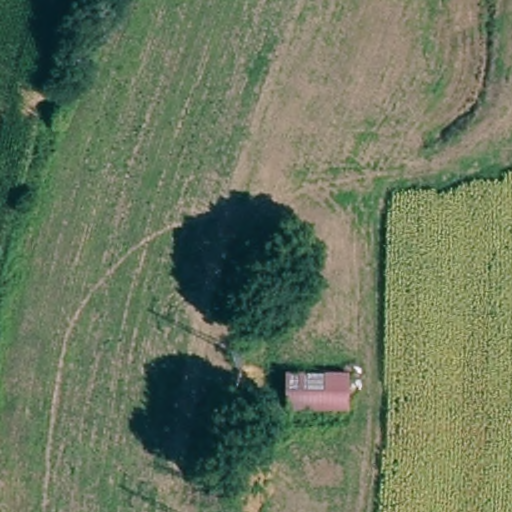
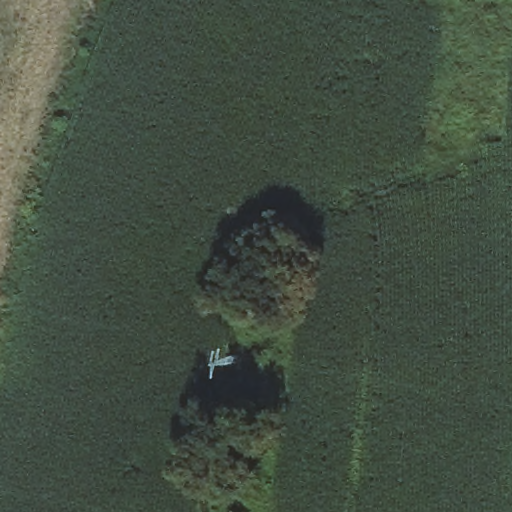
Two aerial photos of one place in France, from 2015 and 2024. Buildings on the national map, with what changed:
demolished [(352,416),(287,414),(287,375),(351,375),(352,416)]

